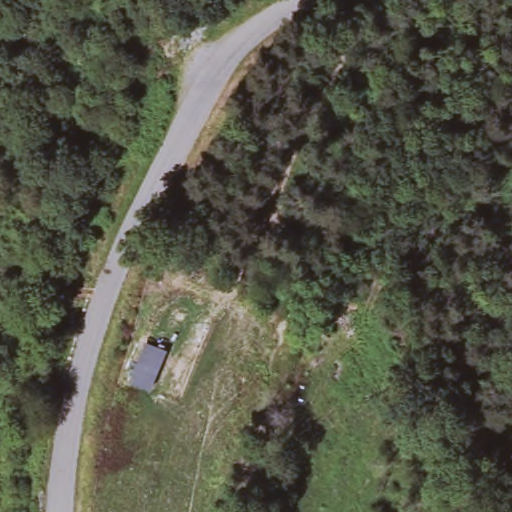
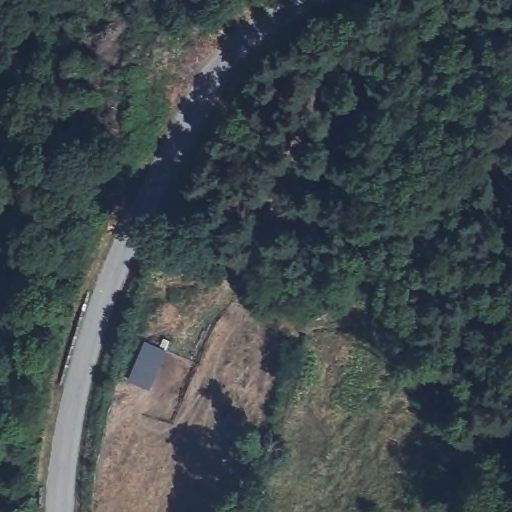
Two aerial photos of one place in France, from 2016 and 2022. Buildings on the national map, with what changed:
unchanged [(166,350),(150,389),(129,380),(146,341),(166,350)]

